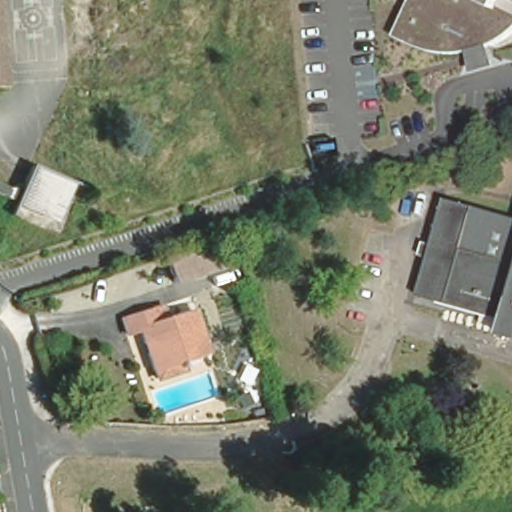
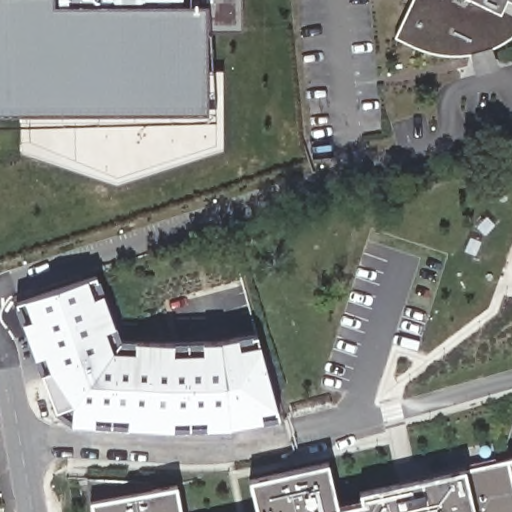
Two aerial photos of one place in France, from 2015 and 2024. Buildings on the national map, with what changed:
new [(244,26),(200,26),(203,71),(203,109),(21,109),(0,109),(0,0),(243,0),(244,26)]
unchanged [(494,51),(501,71),(476,78),(470,55),(454,58),(436,57),(397,41),(417,0),(512,0),(512,42),(494,51)]
demolished [(0,192),(0,183),(21,192),(34,164),(70,180),(54,217),(0,192)]
demolished [(107,218),(91,222),(85,181),(103,179),(107,218)]
demolished [(466,247),(512,260),(512,319),(421,293),(448,195),(478,204),(466,247)]
demolished [(218,254),(225,279),(176,295),(168,271),(218,254)]
new [(243,424),(203,429),(69,423),(54,410),(14,303),(100,273),(124,339),(169,342),(218,341),(257,333),(279,417),(243,424)]
demolished [(161,312),(166,325),(192,316),(204,356),(179,365),(183,376),(156,386),(138,334),(127,338),(123,325),(161,312)]
demolished [(509,335),(512,321),(512,336),(509,335)]
new [(512,458),(512,512),(473,512),(463,470),(512,458)]
new [(328,462),(337,500),(463,470),(473,512),(256,512),(249,481),(328,462)]
new [(149,491),(90,502),(85,478),(147,481),(149,491)]
new [(149,491),(177,485),(182,512),(93,512),(90,502),(149,491)]

